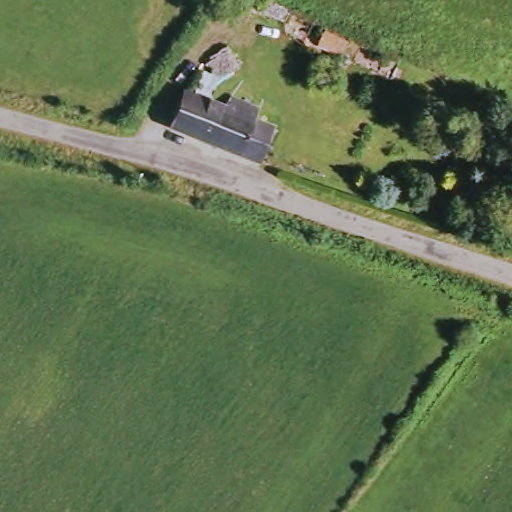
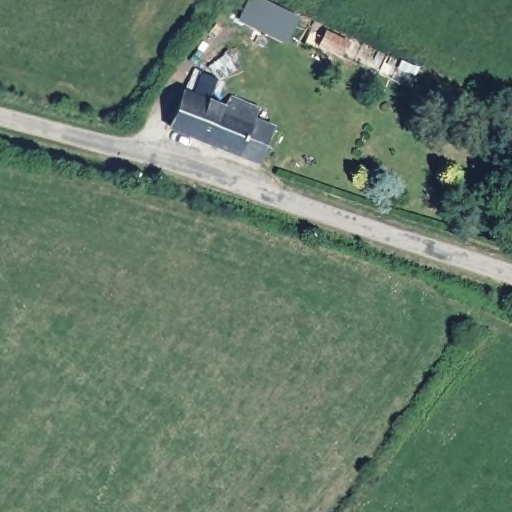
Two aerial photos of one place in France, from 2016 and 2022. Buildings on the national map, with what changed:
new [(287,43),(238,20),(249,0),(263,0),(300,17),(287,43)]
unchanged [(345,40),(337,54),(316,43),(323,27),(345,40)]
unchanged [(225,106),(228,98),(259,110),(255,125),(272,133),(258,170),(252,169),(169,134),(186,90),(225,106)]

